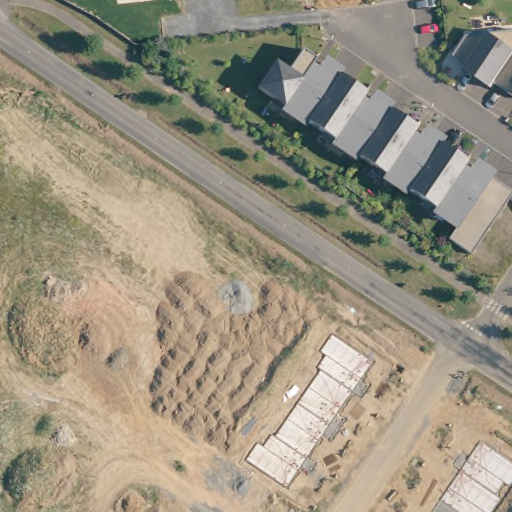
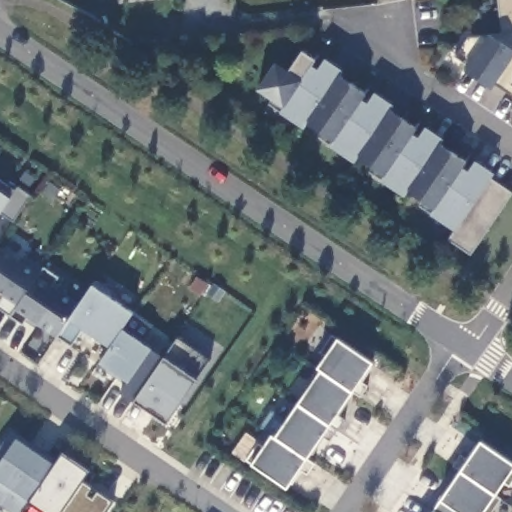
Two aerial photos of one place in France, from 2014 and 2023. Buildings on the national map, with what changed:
unchanged [(467,40),(512,35),(512,62),(495,86),(454,60),(467,40)]
unchanged [(449,243),(459,228),(258,94),(272,72),(285,80),(302,55),(316,64),(312,70),(323,77),(327,71),(366,97),(362,103),(373,110),(377,105),(417,131),(413,137),(424,145),(428,139),(467,165),(463,170),(474,178),(478,172),(512,195),(512,198),(472,258),(449,243)]
unchanged [(512,62),(512,98),(495,86),(512,62)]
new [(14,221),(1,212),(0,215),(0,179),(15,190),(19,185),(31,194),(14,221)]
new [(134,400),(142,390),(129,380),(101,361),(110,346),(83,326),(72,343),(56,334),(55,336),(28,316),(23,323),(0,307),(0,302),(4,295),(0,292),(0,245),(23,261),(27,256),(43,267),(44,265),(60,276),(55,285),(79,303),(93,283),(135,311),(123,328),(152,348),(149,352),(162,361),(165,355),(178,336),(210,360),(198,377),(166,421),(134,400)]
new [(252,462),(247,460),(258,441),(265,445),(272,432),(277,436),(322,370),(318,366),(326,354),(321,351),(333,334),(338,337),(373,362),(288,486),(252,462)]
new [(24,512),(21,510),(21,512),(13,512),(0,503),(0,477),(0,462),(2,458),(0,456),(0,447),(13,428),(18,432),(16,435),(17,437),(56,463),(63,452),(89,470),(83,481),(93,487),(88,494),(93,497),(98,490),(114,500),(106,512),(24,512)]
new [(481,440),(512,461),(512,471),(484,512),(432,512),(441,498),(481,440)]

